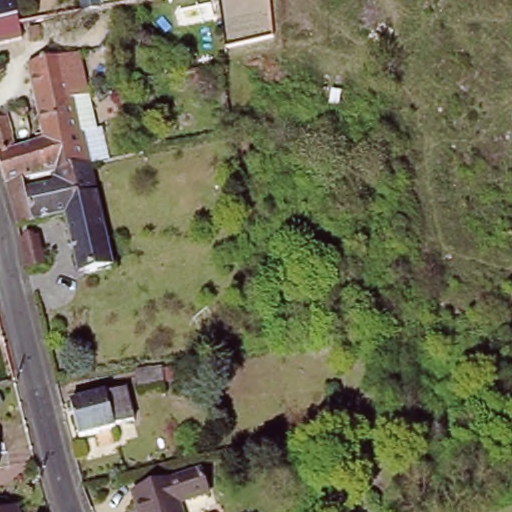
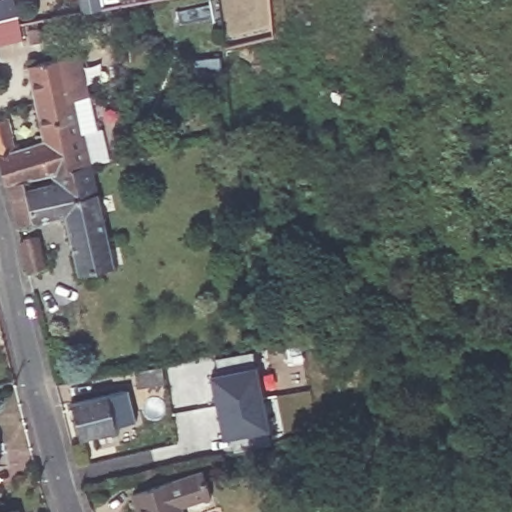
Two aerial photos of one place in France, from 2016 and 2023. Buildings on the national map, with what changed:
unchanged [(8,17),(0,19),(0,3),(4,2),(8,17)]
unchanged [(0,123),(9,120),(18,149),(38,143),(36,136),(44,134),(28,65),(79,54),(89,96),(73,100),(74,105),(90,101),(102,154),(88,157),(90,167),(6,186),(0,166),(0,123)]
unchanged [(0,64),(0,55),(3,63),(0,64)]
unchanged [(90,167),(112,262),(118,261),(118,268),(79,277),(64,215),(18,226),(6,186),(90,167)]
unchanged [(38,238),(44,268),(28,272),(21,242),(38,238)]
new [(228,437),(222,438),(209,374),(218,373),(215,358),(251,353),(251,368),(256,367),(269,429),(264,430),(269,445),(233,451),(228,437)]
unchanged [(161,367),(163,382),(139,386),(137,371),(161,367)]
unchanged [(128,394),(135,425),(115,430),(116,432),(80,441),(72,407),(128,394)]
unchanged [(192,476),(200,502),(180,508),(181,512),(137,512),(133,496),(192,476)]

